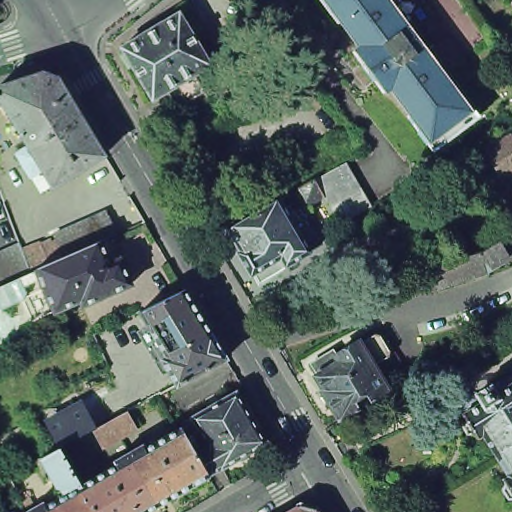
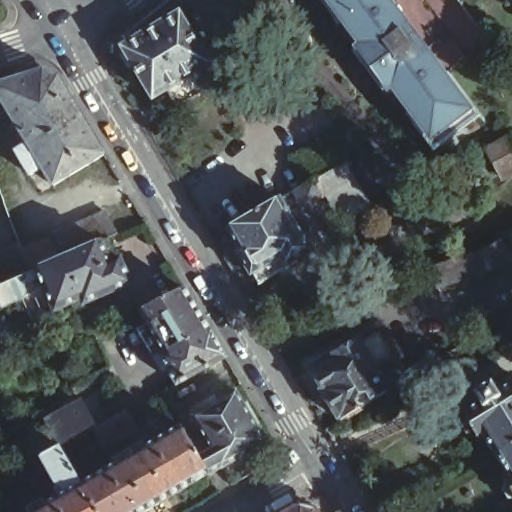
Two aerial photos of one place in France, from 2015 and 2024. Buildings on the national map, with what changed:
unchanged [(426,129),(427,128),(402,95),(398,98),(364,53),(368,50),(344,16),(343,17),(330,0),(397,0),(484,115),(488,121),(444,154),(426,129)]
unchanged [(182,108),(176,99),(168,85),(153,94),(151,89),(150,90),(141,75),(143,75),(133,60),(129,62),(121,49),(125,46),(123,42),(144,29),(144,28),(157,20),(158,20),(179,7),(211,60),(196,69),(204,82),(209,92),(182,108)]
unchanged [(29,140),(0,92),(0,81),(44,66),(59,72),(105,150),(53,180),(43,163),(31,170),(17,147),(29,140)]
unchanged [(495,164),(486,149),(512,134),(512,173),(504,178),(495,164)]
unchanged [(341,224),(329,202),(324,195),(304,206),(295,190),(315,180),(344,164),(357,185),(370,207),(341,224)]
unchanged [(256,194),(271,185),(279,199),(281,198),(301,234),(312,228),(321,244),(311,249),(311,251),(289,265),(290,266),(259,285),(253,273),(251,275),(238,252),(240,250),(228,229),(264,207),(256,194)]
unchanged [(31,320),(28,312),(22,315),(16,301),(3,306),(0,305),(0,252),(5,250),(20,243),(23,250),(40,243),(51,239),(53,242),(58,240),(54,234),(68,228),(81,222),(81,221),(91,216),(92,217),(106,211),(108,215),(118,209),(118,207),(128,202),(140,225),(135,227),(128,230),(117,235),(109,237),(103,240),(101,241),(111,263),(120,258),(132,283),(84,305),(81,300),(55,311),(34,320),(31,320)]
unchanged [(482,251),(499,240),(509,257),(491,268),(488,270),(488,271),(438,287),(432,267),(482,251)]
unchanged [(141,312),(141,311),(185,289),(185,288),(212,333),(167,355),(141,312)]
unchanged [(80,371),(71,353),(63,335),(80,326),(89,322),(98,340),(107,358),(80,371)]
unchanged [(167,355),(212,333),(227,357),(201,371),(178,385),(163,358),(167,355)]
unchanged [(323,390),(325,390),(316,375),(319,375),(311,363),(334,350),(336,355),(359,340),(360,343),(376,333),(381,335),(391,351),(389,356),(395,353),(411,377),(389,390),(387,392),(371,401),(361,408),(341,420),(323,390)]
unchanged [(110,365),(118,381),(80,399),(73,384),(110,365)]
unchanged [(474,431),(474,432),(468,432),(463,424),(465,419),(466,418),(463,413),(464,412),(459,404),(459,402),(475,392),(477,392),(492,383),(492,385),(504,377),(509,385),(512,382),(512,445),(496,454),(483,433),(478,436),(474,431)]
unchanged [(209,445),(193,416),(236,391),(266,442),(210,474),(197,452),(209,445)]
unchanged [(128,410),(138,427),(120,437),(102,447),(93,430),(60,446),(48,425),(84,405),(95,427),(109,420),(128,410)]
unchanged [(143,443),(146,447),(181,427),(182,426),(197,452),(210,474),(209,475),(159,503),(128,452),(143,443)]
unchanged [(503,489),(506,484),(507,483),(504,478),(509,475),(496,454),(512,445),(512,498),(509,498),(503,489)]
unchanged [(60,446),(81,485),(97,512),(29,512),(28,510),(43,501),(46,505),(65,493),(62,487),(58,485),(41,456),(60,446)]
unchanged [(117,463),(115,460),(128,452),(159,503),(144,512),(97,512),(81,485),(117,463)]
unchanged [(301,504),(316,507),(319,512),(287,512),(301,504)]

